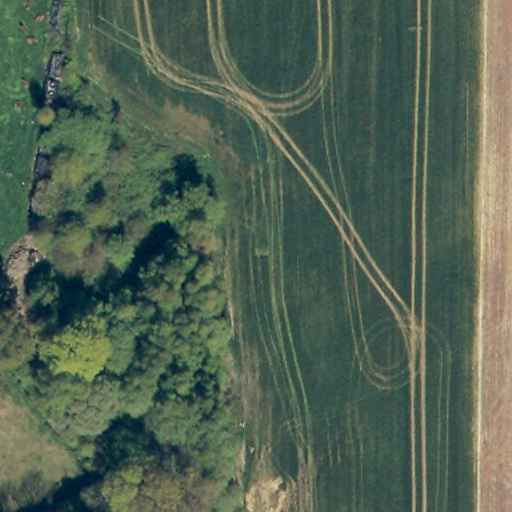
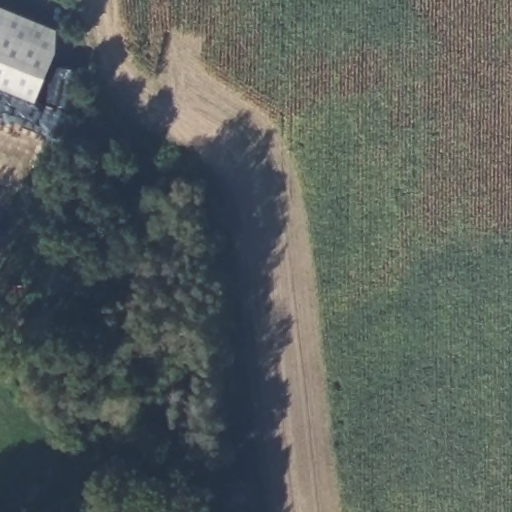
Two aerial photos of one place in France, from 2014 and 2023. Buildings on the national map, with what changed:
new [(57,31),(57,54),(37,102),(0,88),(0,7),(57,31)]
unchanged [(63,512),(69,509),(70,512),(63,512)]

